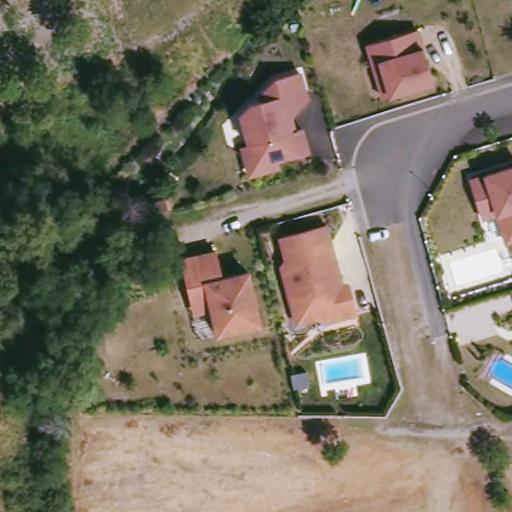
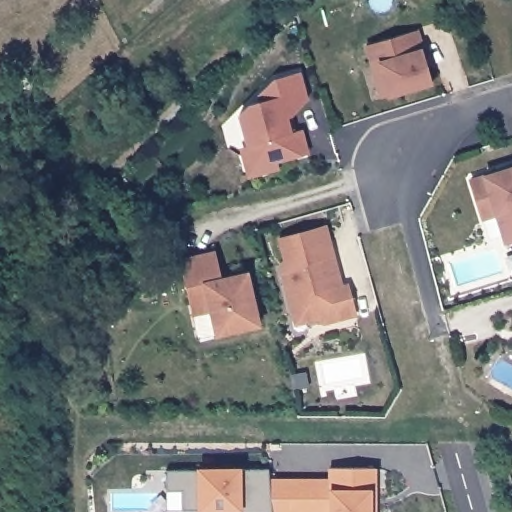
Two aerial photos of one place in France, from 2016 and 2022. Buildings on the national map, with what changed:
unchanged [(373,65),(367,45),(417,30),(426,59),(423,60),(425,67),(426,70),(430,69),(433,83),(391,96),(383,98),(373,65)]
unchanged [(302,105),(287,120),(282,121),(286,136),(297,133),(303,156),(273,165),(267,174),(252,178),(243,173),(238,158),(244,148),(235,118),(246,108),(257,105),(255,98),(270,83),(294,76),(302,105)]
unchanged [(504,236),(490,240),(483,219),(471,180),(512,168),(512,241),(506,243),(504,236)]
unchanged [(327,229),(345,295),(351,293),(356,312),(313,323),(301,316),(295,317),(284,276),(290,275),(281,241),(327,229)]
unchanged [(191,305),(181,263),(216,254),(224,285),(232,284),(235,278),(248,275),(260,327),(218,337),(200,341),(191,305)]
new [(374,495),(370,495),(370,508),(374,508),(374,512),(330,512),(330,467),(374,467),(374,495)]
new [(268,468),(273,512),(186,512),(184,497),(168,498),(166,477),(268,468)]
new [(300,479),(300,512),(273,512),(272,506),(270,479),(300,479)]
new [(330,479),(330,512),(300,512),(300,479),(330,479)]

